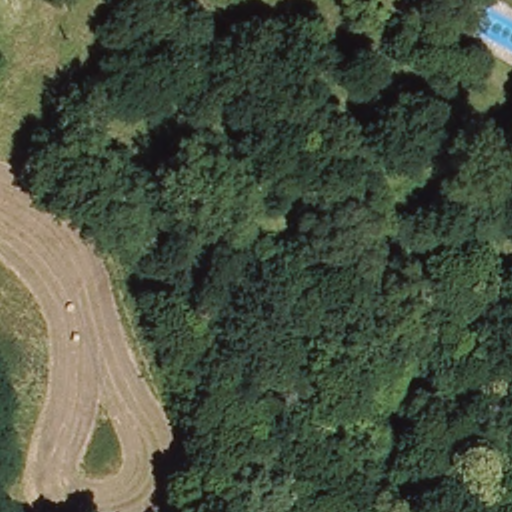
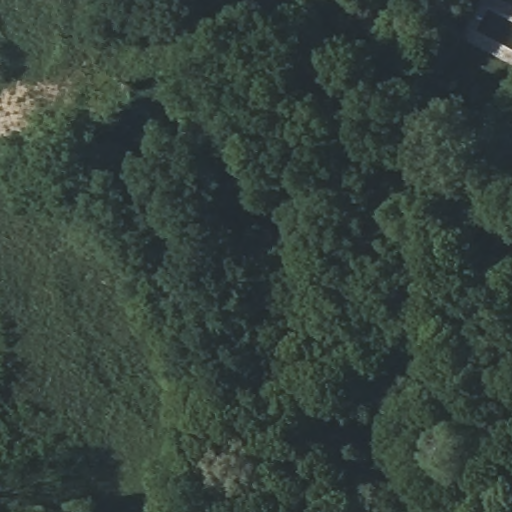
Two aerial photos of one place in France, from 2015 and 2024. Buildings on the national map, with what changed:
unchanged [(0,88),(0,80),(4,81),(0,88)]

